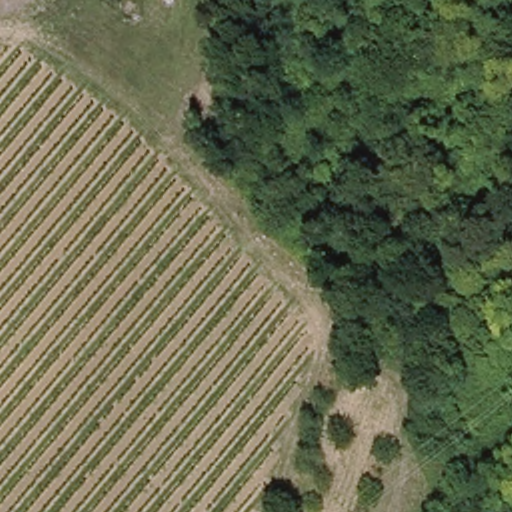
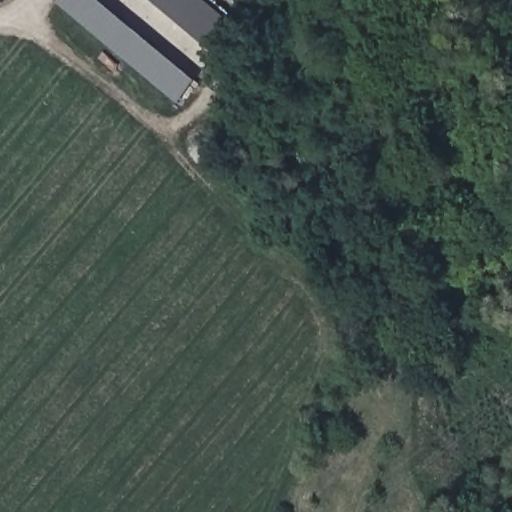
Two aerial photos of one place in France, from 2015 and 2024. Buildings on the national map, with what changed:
new [(59,4),(63,0),(100,0),(199,82),(180,105),(59,4)]
new [(239,28),(219,56),(153,0),(206,0),(239,28)]

